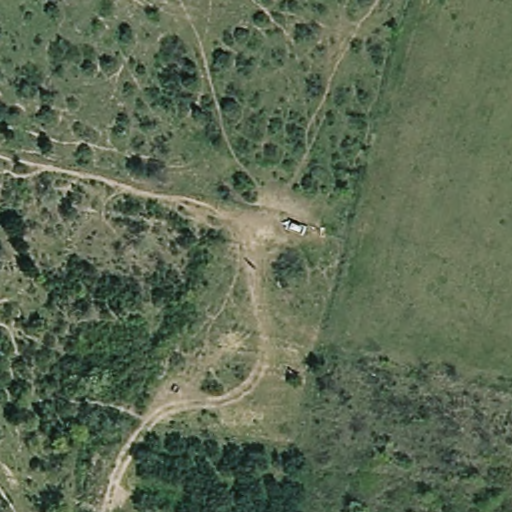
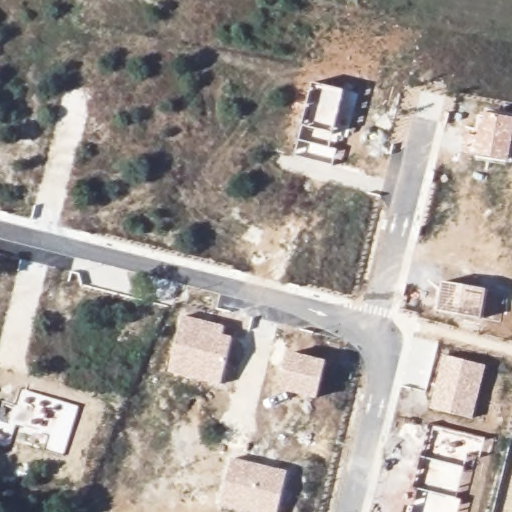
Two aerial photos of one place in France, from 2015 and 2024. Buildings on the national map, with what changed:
new [(295,156),(302,125),(314,83),(345,91),(333,133),(330,148),(339,150),(333,166),(295,156)]
new [(512,117),(512,141),(508,162),(473,155),(474,155),(464,152),(467,135),(477,136),(482,113),(512,117)]
new [(487,290),(482,319),(438,311),(443,281),(487,290)]
new [(233,338),(221,385),(168,370),(184,316),(225,327),(222,334),(233,338)]
new [(326,360),(317,399),(281,390),(290,351),(326,360)]
new [(486,366),(473,419),(431,408),(444,355),(486,366)]
new [(485,440),(481,459),(468,456),(457,497),(462,499),(459,512),(413,512),(419,490),(413,489),(430,425),(485,440)]
new [(279,512),(250,512),(219,506),(232,457),(288,471),(279,512)]

